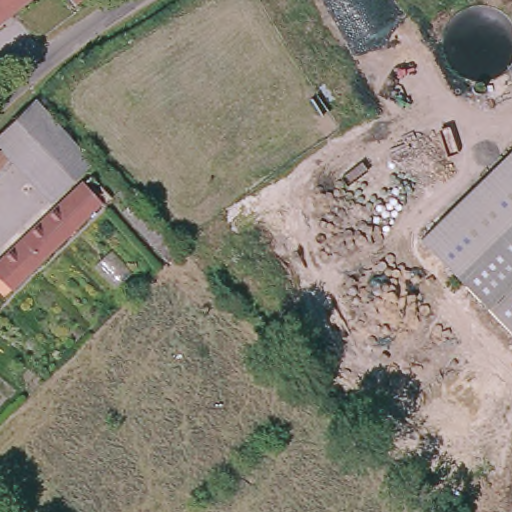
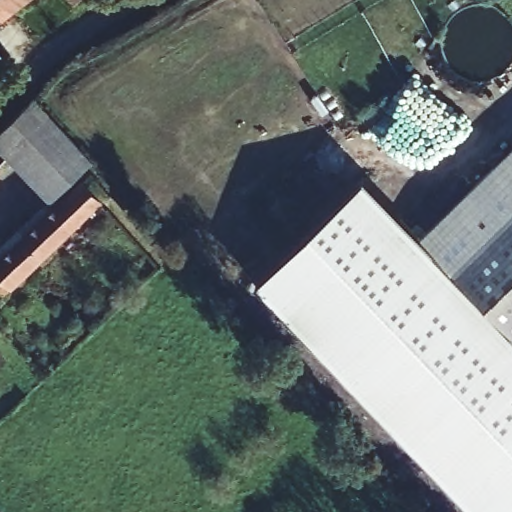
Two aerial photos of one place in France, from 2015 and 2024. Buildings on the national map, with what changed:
new [(0,27),(0,0),(35,0),(0,27)]
demolished [(41,1),(0,39),(0,8),(9,0),(40,0),(41,1)]
unchanged [(49,193),(10,150),(0,142),(0,127),(30,99),(87,157),(49,193)]
unchanged [(0,160),(0,142),(10,150),(0,160)]
unchanged [(417,239),(512,148),(512,334),(417,239)]
unchanged [(107,194),(0,297),(0,254),(86,173),(107,194)]
new [(363,181),(417,239),(512,334),(512,512),(475,512),(257,283),(363,181)]
unchanged [(117,200),(127,191),(177,237),(175,239),(167,249),(117,200)]

